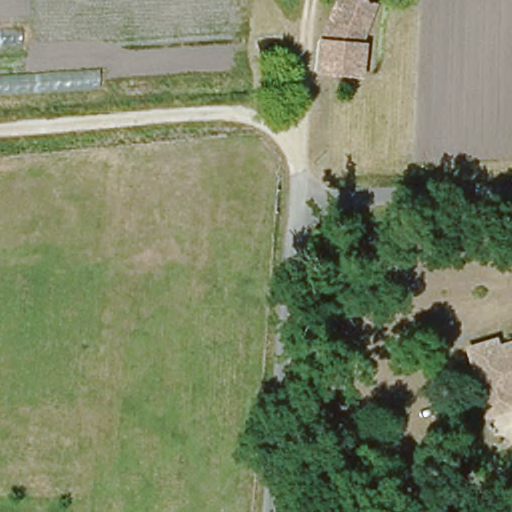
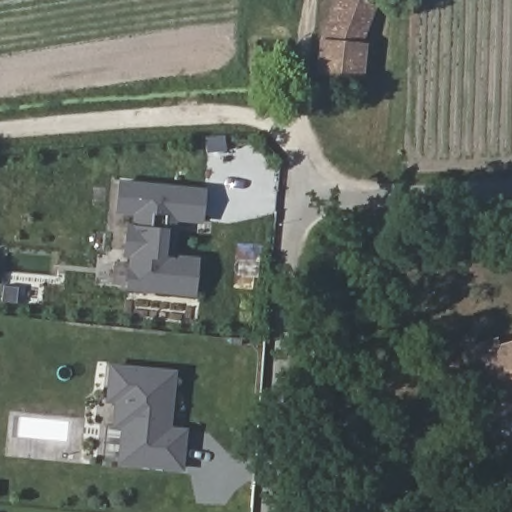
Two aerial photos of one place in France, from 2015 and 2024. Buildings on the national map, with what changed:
unchanged [(376,10),(365,47),(371,48),(368,83),(322,79),(325,44),(339,0),(350,0),(376,10)]
new [(202,224),(175,222),(173,255),(198,257),(195,296),(127,290),(130,260),(121,258),(125,224),(134,225),(133,215),(115,214),(119,180),(207,189),(202,224)]
unchanged [(507,398),(511,410),(485,419),(464,353),(490,345),(492,352),(512,346),(512,397),(507,398)]
new [(113,365),(175,371),(170,427),(186,430),(182,466),(121,460),(125,425),(116,424),(119,399),(110,398),(113,365)]

